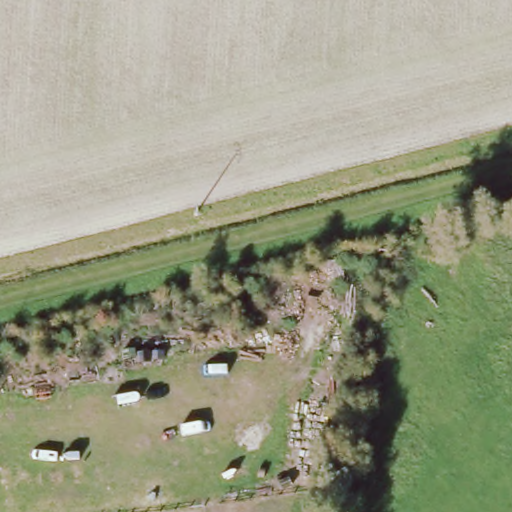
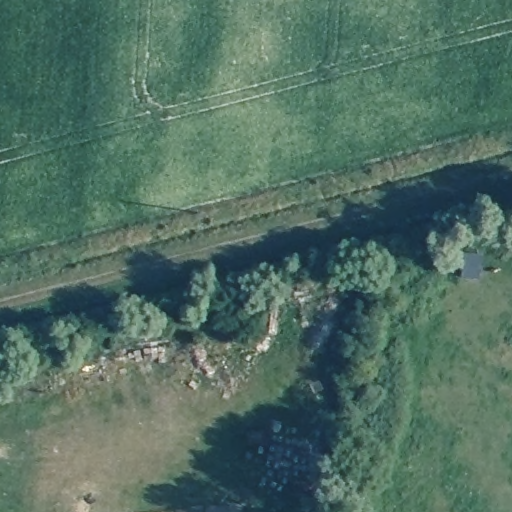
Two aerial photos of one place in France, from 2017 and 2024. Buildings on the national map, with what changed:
[]

